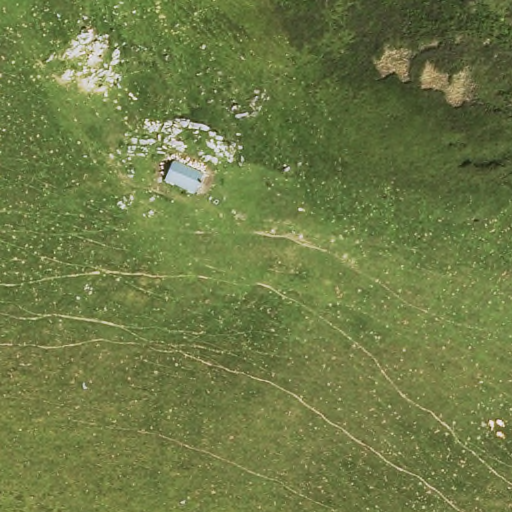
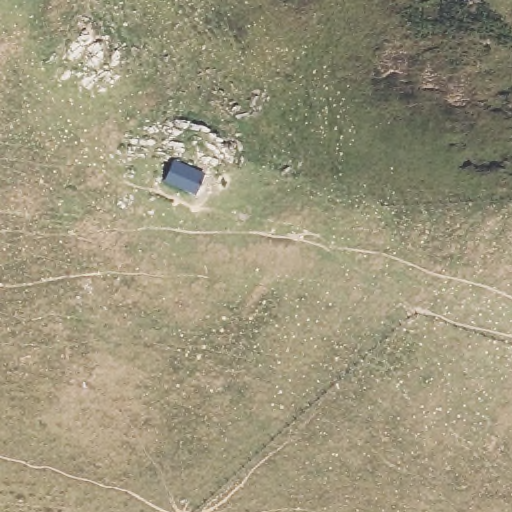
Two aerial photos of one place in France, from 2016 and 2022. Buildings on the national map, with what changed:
unchanged [(196,170),(187,191),(159,180),(166,157),(196,170)]

